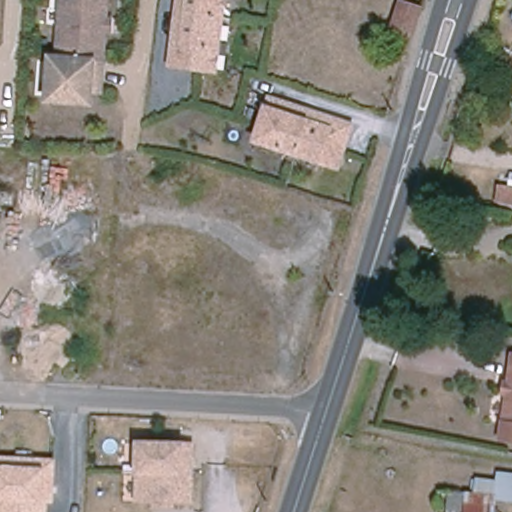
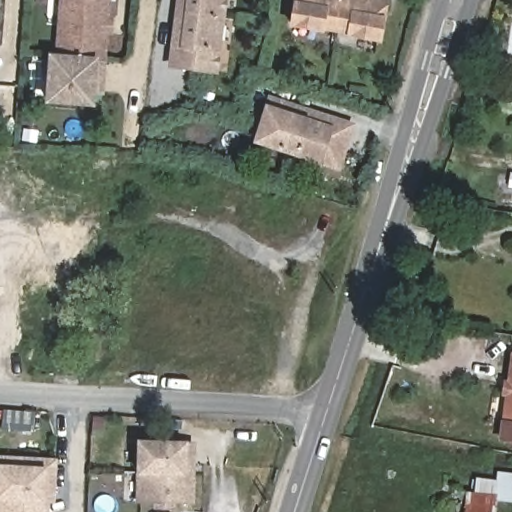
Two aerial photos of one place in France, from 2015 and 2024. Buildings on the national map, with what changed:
unchanged [(115,18),(114,27),(109,27),(104,88),(96,87),(95,100),(53,96),(56,54),(61,54),(66,0),(112,0),(110,17),(115,18)]
unchanged [(219,72),(172,65),(181,0),(229,0),(219,72)]
new [(386,16),(381,42),(346,36),(324,32),(288,25),(293,0),(389,0),(386,16)]
demolished [(424,7),(404,61),(385,53),(401,0),(424,7)]
unchanged [(357,123),(336,170),(322,164),(259,143),(269,105),(273,95),(357,123)]
demolished [(512,173),(512,204),(496,202),(504,172),(512,173)]
unchanged [(502,441),(505,422),(512,367),(512,442),(502,441)]
unchanged [(189,473),(196,474),(194,507),(177,507),(177,512),(152,512),(153,505),(139,505),(140,476),(142,441),(189,443),(189,473)]
unchanged [(54,503),(49,503),(49,512),(0,512),(0,456),(56,458),(54,503)]
unchanged [(512,474),(512,502),(499,500),(499,494),(476,491),(478,478),(497,481),(499,472),(512,474)]
unchanged [(497,496),(495,512),(438,512),(439,492),(497,496)]

